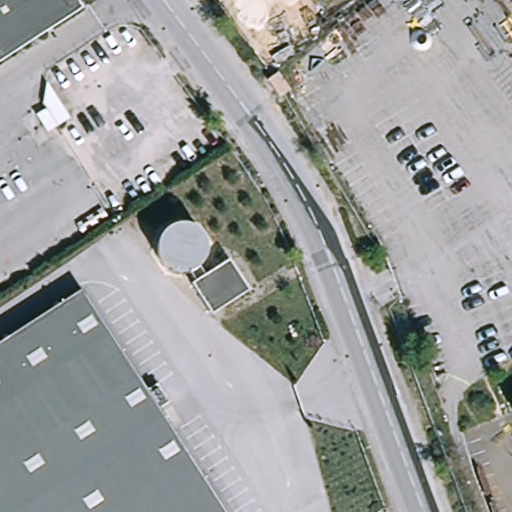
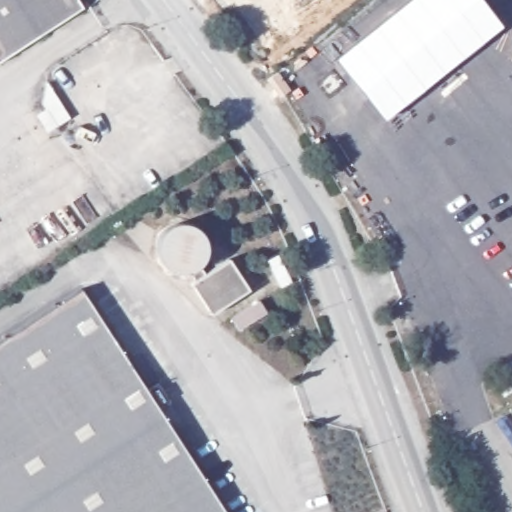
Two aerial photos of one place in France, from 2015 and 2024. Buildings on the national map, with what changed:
unchanged [(0,59),(0,0),(66,0),(74,11),(0,59)]
new [(383,119),(334,58),(407,0),(481,0),(501,26),(383,119)]
unchanged [(271,79),(277,75),(290,92),(285,95),(284,96),(271,79)]
unchanged [(249,290),(211,314),(191,283),(195,280),(189,271),(183,272),(177,272),(171,270),(167,268),(161,262),(158,257),(157,251),(156,245),(158,239),(162,232),(165,228),(170,225),(173,224),(179,223),(184,223),(191,224),(195,226),(199,230),(203,235),(205,242),(206,249),(205,256),(203,260),(199,265),(205,274),(229,258),(249,290)]
unchanged [(81,289),(146,390),(157,383),(169,402),(158,409),(224,512),(0,512),(0,341),(81,289)]

